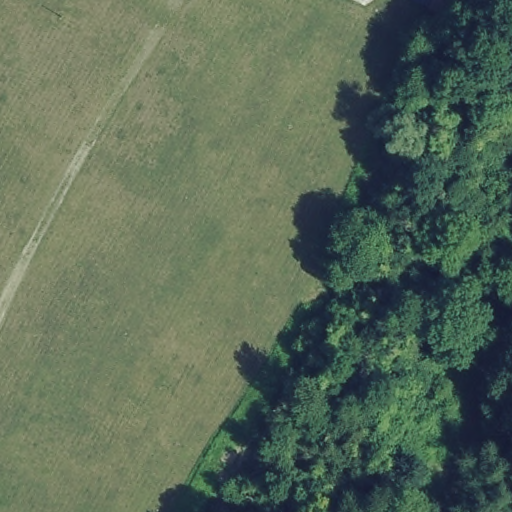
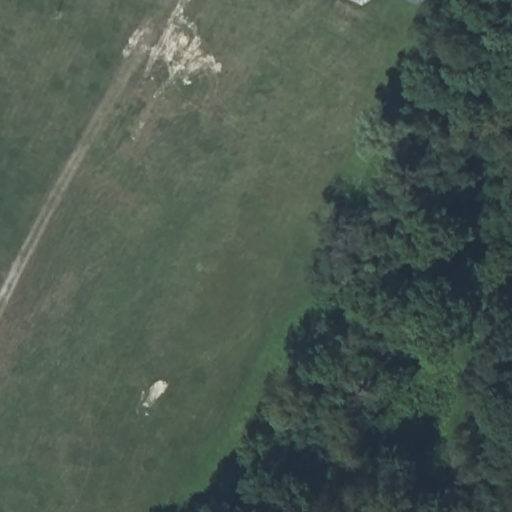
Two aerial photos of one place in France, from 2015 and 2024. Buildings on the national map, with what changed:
unchanged [(419,6),(405,0),(422,0),(419,6)]

